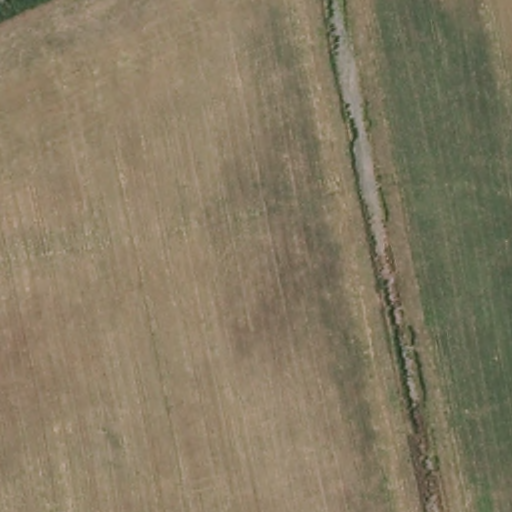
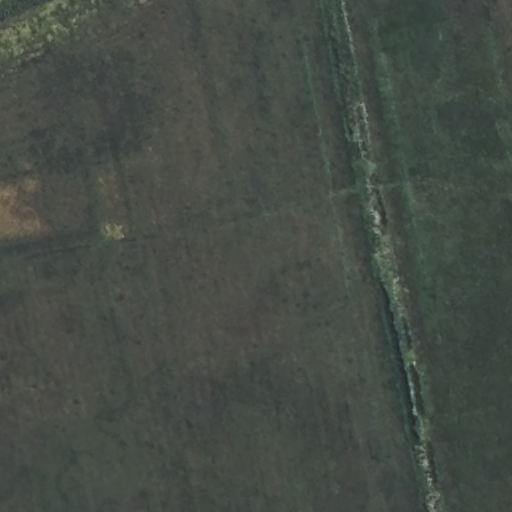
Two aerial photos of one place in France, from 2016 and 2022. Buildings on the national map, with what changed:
[]

